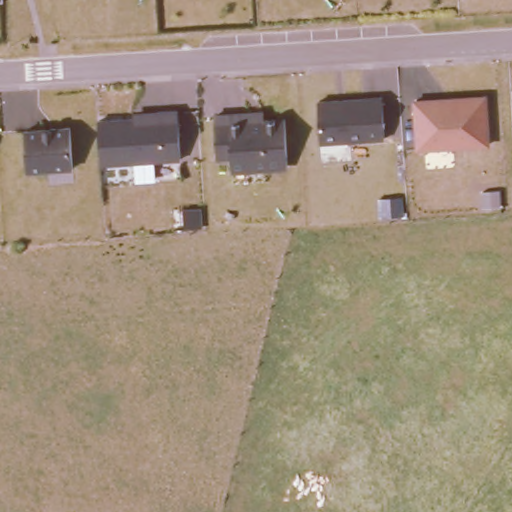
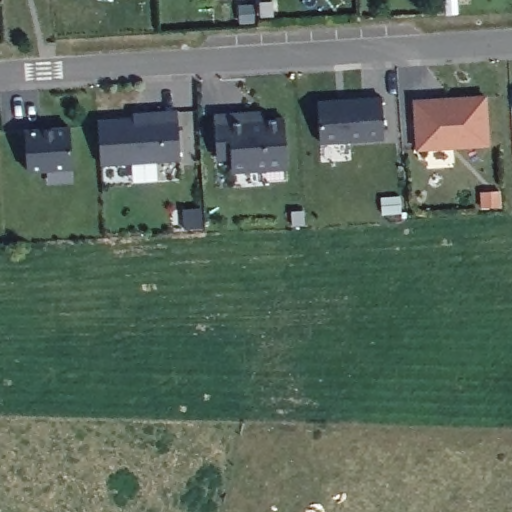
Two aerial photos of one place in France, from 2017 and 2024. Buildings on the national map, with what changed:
unchanged [(381,97),(385,140),(320,145),(319,102),(381,97)]
unchanged [(492,146),(417,151),(413,98),(485,97),(492,146)]
unchanged [(215,113),(288,108),(288,169),(232,173),(232,157),(217,157),(215,113)]
unchanged [(159,118),(158,113),(177,111),(180,159),(101,164),(99,122),(159,118)]
unchanged [(25,132),(72,129),(75,169),(27,172),(25,132)]

